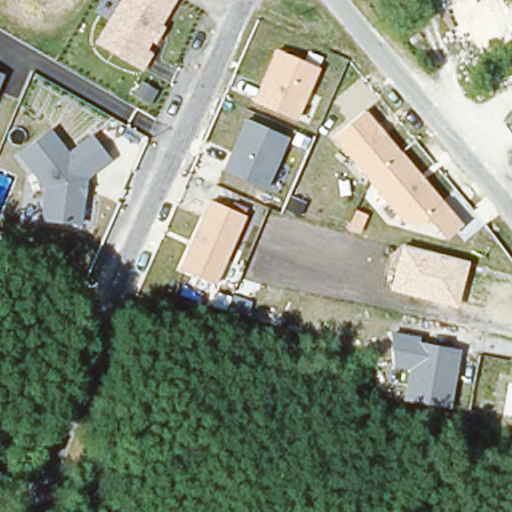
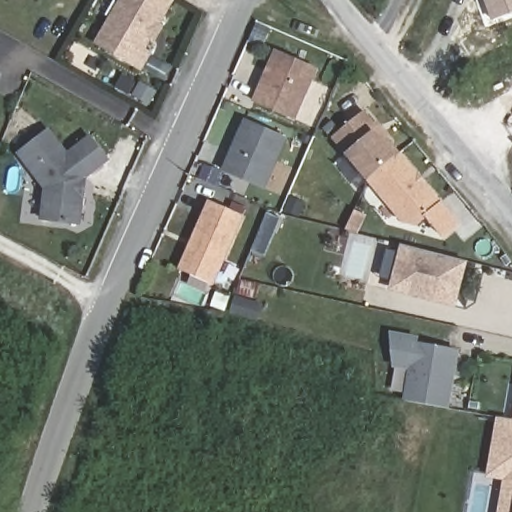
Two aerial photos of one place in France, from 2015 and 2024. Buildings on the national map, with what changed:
unchanged [(163,25),(168,27),(157,45),(152,42),(147,50),(154,55),(144,71),(93,44),(120,0),(177,0),(163,25)]
new [(512,15),(496,21),(488,0),(512,0),(512,15)]
unchanged [(275,49),(320,69),(298,120),(252,101),(275,49)]
unchanged [(0,85),(0,73),(4,75),(0,85)]
unchanged [(447,240),(427,220),(417,227),(402,224),(332,139),(366,110),(463,227),(447,240)]
unchanged [(290,137),(267,190),(223,171),(246,120),(290,137)]
unchanged [(68,152),(93,135),(112,162),(90,177),(84,227),(40,224),(44,189),(19,153),(52,130),(68,152)]
unchanged [(248,216),(218,285),(179,270),(209,200),(248,216)]
unchanged [(456,307),(389,290),(401,244),(468,261),(456,307)]
unchanged [(450,408),(404,400),(408,369),(394,367),(391,332),(419,337),(419,341),(461,350),(450,408)]
new [(512,512),(498,512),(504,480),(486,477),(496,417),(512,420),(512,512)]

